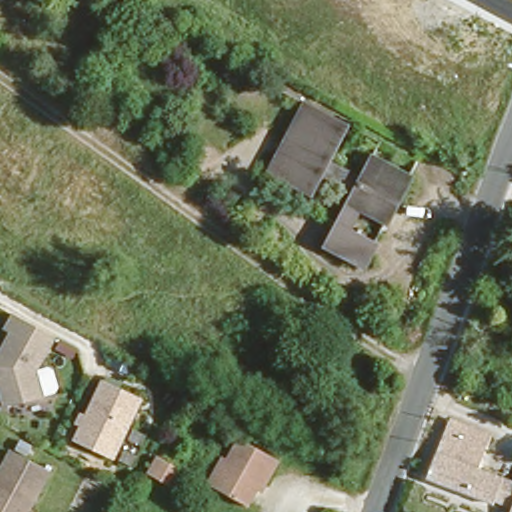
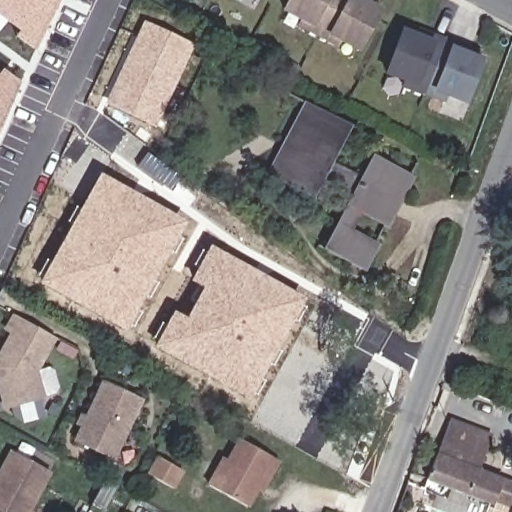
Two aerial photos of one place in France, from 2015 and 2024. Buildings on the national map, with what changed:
new [(15,37),(18,32),(0,18),(0,0),(59,0),(35,52),(15,37)]
new [(337,47),(296,26),(299,20),(281,12),(288,0),(368,0),(367,2),(381,9),(359,53),(340,43),(337,47)]
new [(143,22),(194,46),(155,128),(104,104),(143,22)]
new [(402,28),(416,34),(418,27),(469,46),(466,53),(482,59),(465,104),(447,97),(444,103),(401,87),(403,81),(384,74),(402,28)]
new [(20,86),(0,128),(0,72),(20,86)]
unchanged [(361,170),(371,150),(411,169),(386,220),(362,209),(353,228),(376,240),(363,265),(324,246),(350,192),(322,177),(313,196),(268,174),(304,99),(348,122),(333,156),(361,170)]
new [(37,283),(99,173),(186,222),(125,332),(37,283)]
new [(173,311),(185,317),(201,288),(189,282),(209,246),(305,298),(249,401),(152,347),(173,311)]
unchanged [(55,337),(37,373),(45,398),(8,411),(0,387),(0,368),(0,358),(12,335),(6,331),(13,317),(55,337)]
unchanged [(115,460),(72,441),(102,379),(145,400),(115,460)]
unchanged [(498,477),(489,500),(426,477),(447,422),(488,437),(475,468),(498,477)]
unchanged [(258,473),(246,497),(209,476),(224,448),(228,450),(239,430),(278,450),(264,476),(258,473)]
unchanged [(3,448),(43,468),(21,512),(0,512),(0,456),(3,448)]
new [(156,456),(182,470),(174,485),(148,472),(156,456)]
unchanged [(166,502),(142,490),(141,488),(148,472),(151,473),(173,485),(166,502)]
unchanged [(498,477),(512,481),(512,512),(509,512),(510,508),(489,500),(498,477)]

